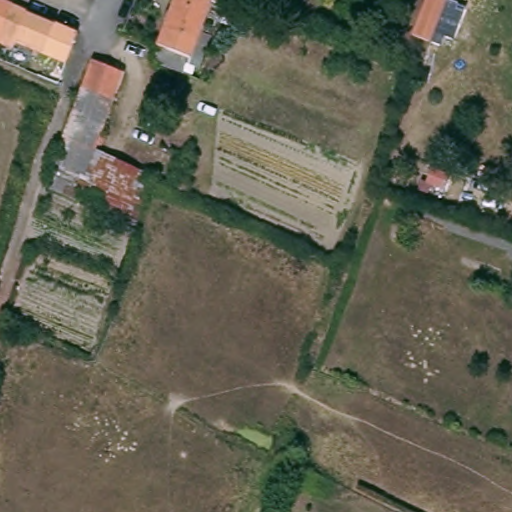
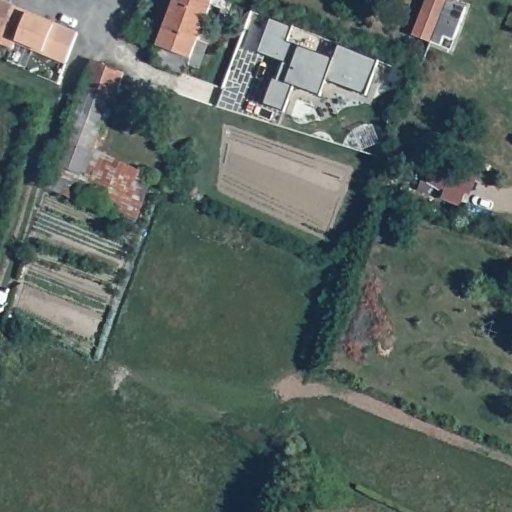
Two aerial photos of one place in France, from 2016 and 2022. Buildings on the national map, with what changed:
unchanged [(151,52),(168,0),(209,0),(192,44),(206,47),(196,72),(183,67),(175,92),(182,95),(174,120),(154,114),(151,52)]
unchanged [(412,34),(420,10),(423,0),(444,0),(441,10),(439,16),(437,21),(431,41),(412,34)]
unchanged [(0,25),(0,5),(8,7),(0,25)]
unchanged [(0,25),(8,7),(72,32),(60,65),(0,42),(0,25)]
new [(271,17),(294,26),(288,41),(334,57),(339,44),(379,60),(367,95),(327,80),(321,95),(295,86),(285,112),(264,104),(274,77),(278,79),(284,62),(258,52),(271,17)]
unchanged [(88,62),(118,76),(90,152),(151,177),(131,230),(43,190),(88,62)]

